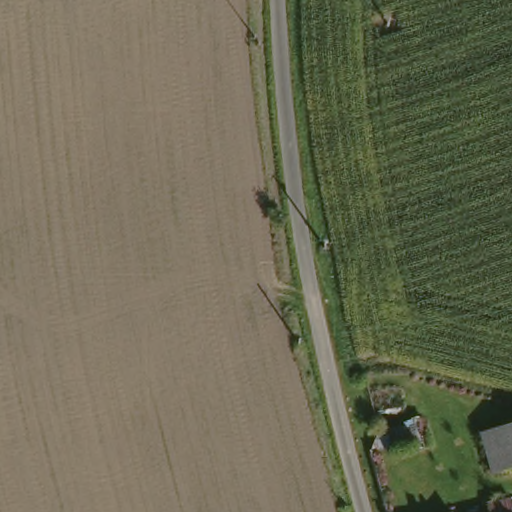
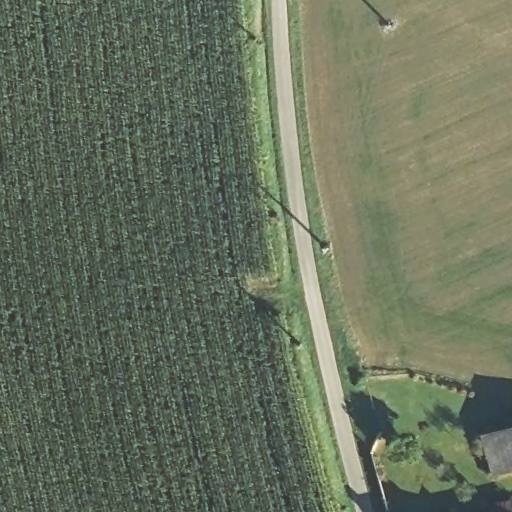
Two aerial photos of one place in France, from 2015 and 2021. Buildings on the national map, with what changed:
unchanged [(502,470),(492,430),(512,425),(512,467),(502,470)]
unchanged [(512,496),(512,512),(495,512),(492,500),(512,496)]
unchanged [(459,512),(444,512),(458,510),(459,512)]

